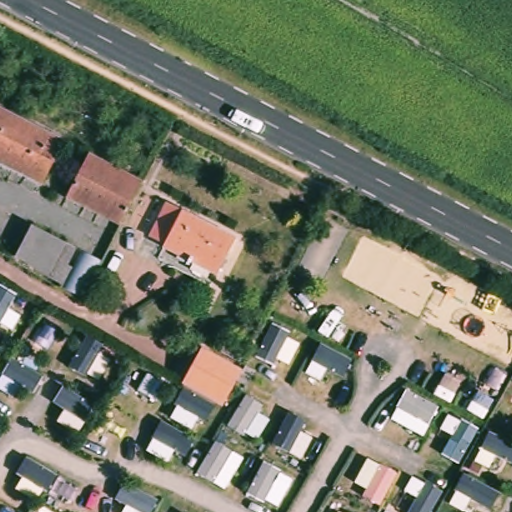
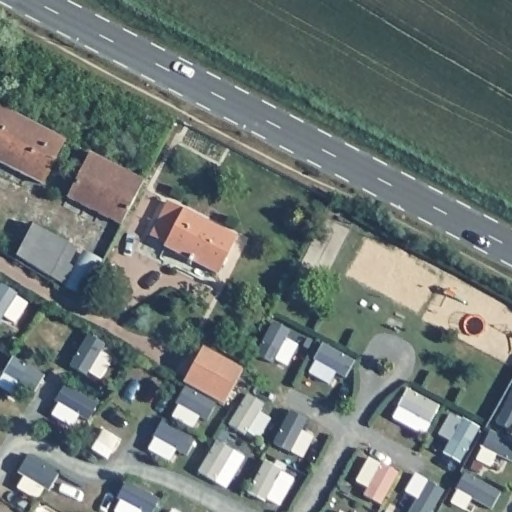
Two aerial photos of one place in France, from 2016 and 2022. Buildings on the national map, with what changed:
unchanged [(45,185),(0,162),(0,107),(67,141),(45,185)]
unchanged [(125,225),(72,199),(95,155),(147,182),(125,225)]
unchanged [(221,275),(167,249),(169,245),(153,236),(171,202),(240,238),(221,275)]
unchanged [(71,265),(76,268),(68,283),(20,257),(36,225),(80,248),(71,265)]
unchanged [(226,406),(188,385),(207,350),(246,371),(226,406)]

